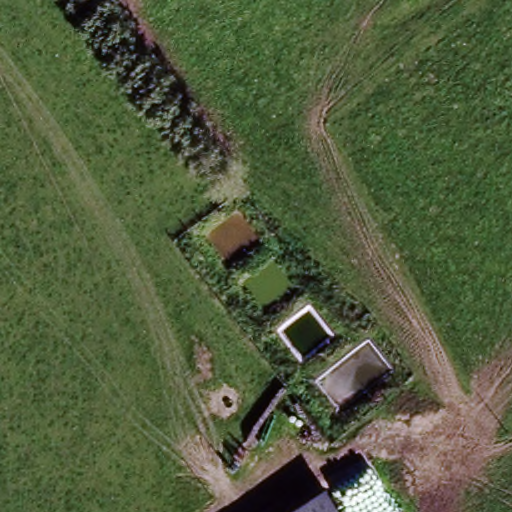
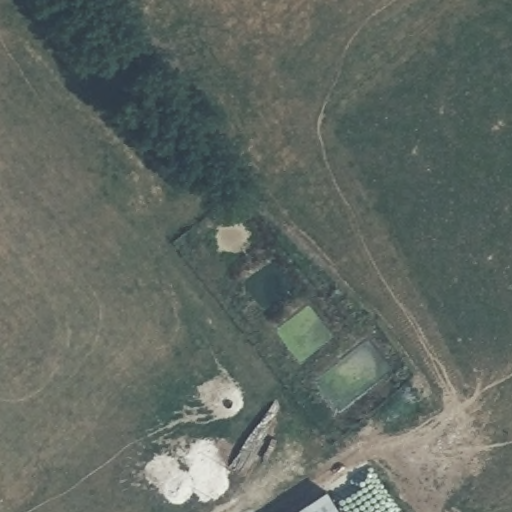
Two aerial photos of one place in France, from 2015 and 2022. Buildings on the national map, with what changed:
unchanged [(340,512),(294,512),(328,491),(340,512)]

